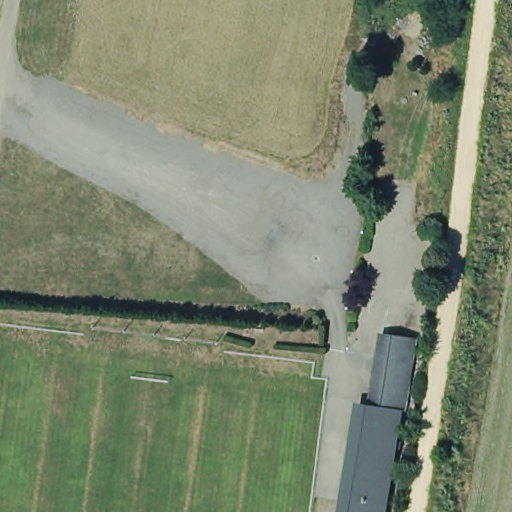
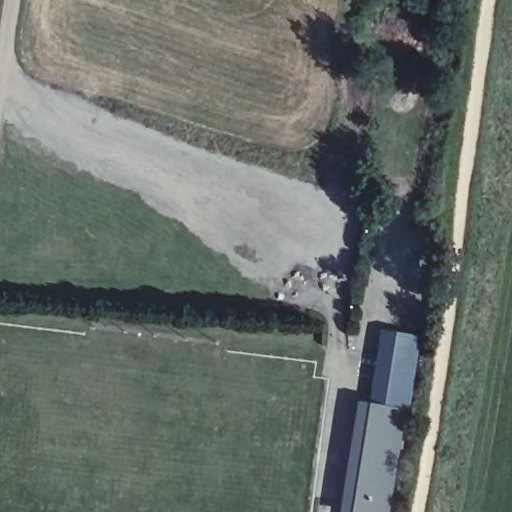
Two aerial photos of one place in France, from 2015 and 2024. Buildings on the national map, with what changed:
unchanged [(375,412),(380,365),(380,356),(382,335),(405,338),(401,366),(396,414),(375,412)]
unchanged [(396,414),(386,502),(352,498),(363,412),(375,412),(396,414)]
unchanged [(351,512),(352,498),(386,502),(385,512),(351,512)]

